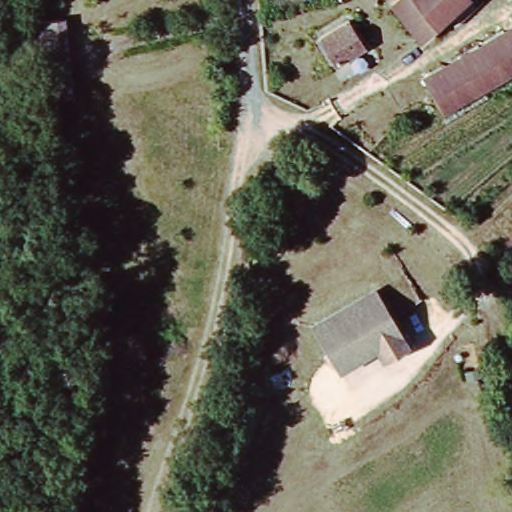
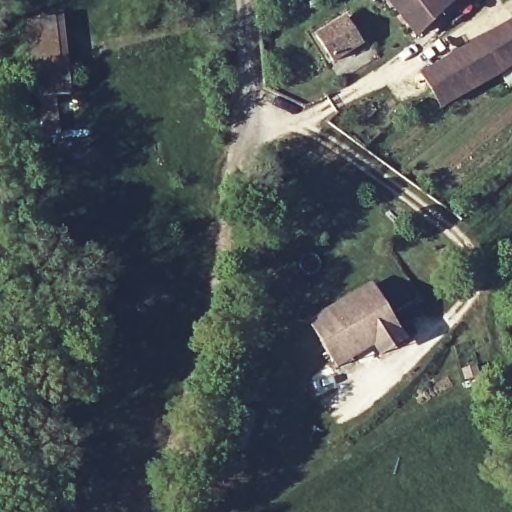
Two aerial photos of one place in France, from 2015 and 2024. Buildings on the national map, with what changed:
unchanged [(397,0),(466,0),(422,35),(395,1),(397,0)]
unchanged [(39,80),(37,70),(30,20),(64,16),(73,74),(39,80)]
unchanged [(346,25),(362,50),(335,69),(317,44),(346,25)]
unchanged [(423,79),(512,26),(512,67),(445,110),(423,79)]
unchanged [(75,90),(63,92),(69,134),(55,136),(49,96),(42,97),(39,80),(73,74),(75,90)]
unchanged [(310,324),(370,287),(395,323),(405,340),(380,355),(375,346),(338,368),(333,360),(310,324)]

